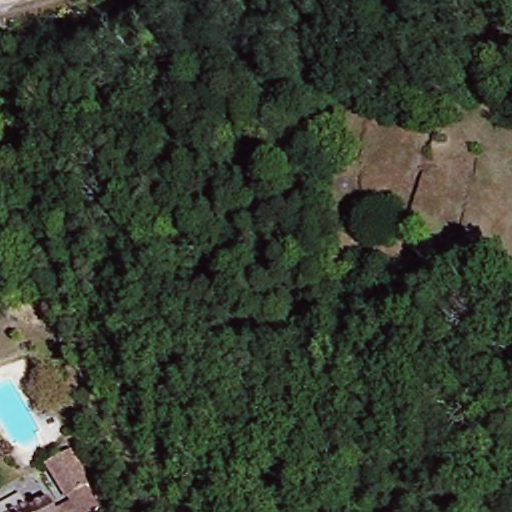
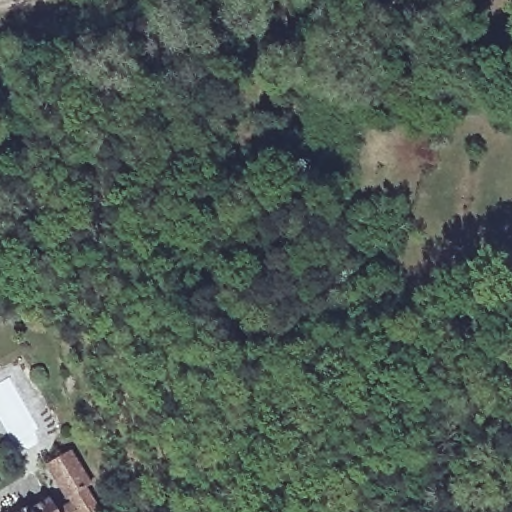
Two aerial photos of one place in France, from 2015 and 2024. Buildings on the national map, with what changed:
unchanged [(60,503),(70,499),(52,465),(74,451),(107,508),(101,512),(34,512),(56,500),(60,503)]

